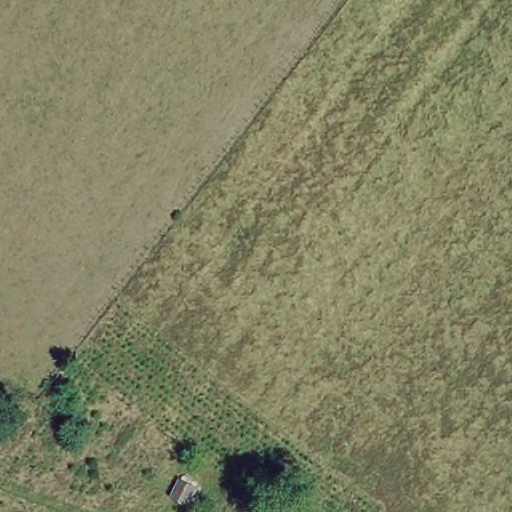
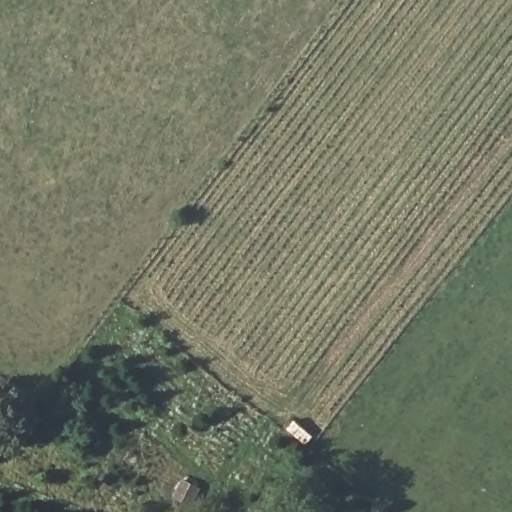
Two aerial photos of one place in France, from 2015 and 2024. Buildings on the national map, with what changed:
unchanged [(174,501),(182,480),(202,488),(192,509),(174,501)]

